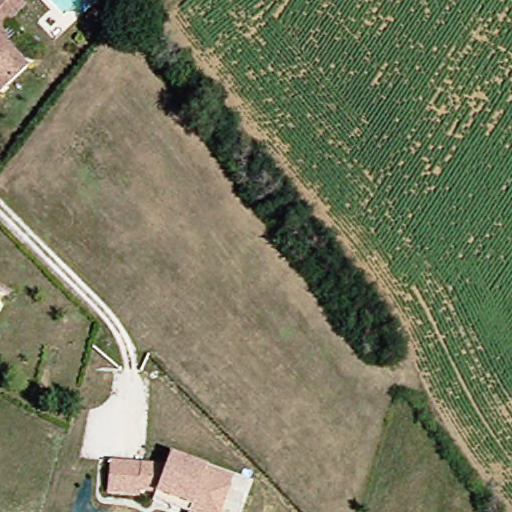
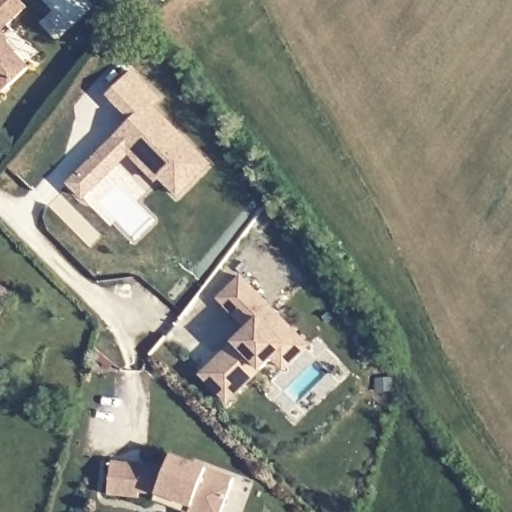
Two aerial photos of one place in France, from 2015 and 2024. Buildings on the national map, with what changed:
unchanged [(24,0),(29,6),(10,24),(40,58),(30,67),(35,74),(10,96),(0,105),(0,0),(24,0)]
new [(107,97),(135,70),(161,97),(154,105),(213,165),(180,191),(177,188),(172,193),(159,180),(155,184),(128,156),(86,197),(70,181),(130,120),(107,97)]
new [(240,274),(258,293),(236,314),(218,296),(240,274)]
new [(245,330),(270,305),(291,326),(306,343),(271,377),(260,366),(227,399),(201,372),(235,339),(245,330)]
unchanged [(155,501),(155,498),(140,496),(109,493),(112,461),(167,465),(171,455),(236,478),(223,512),(185,512),(155,501)]

